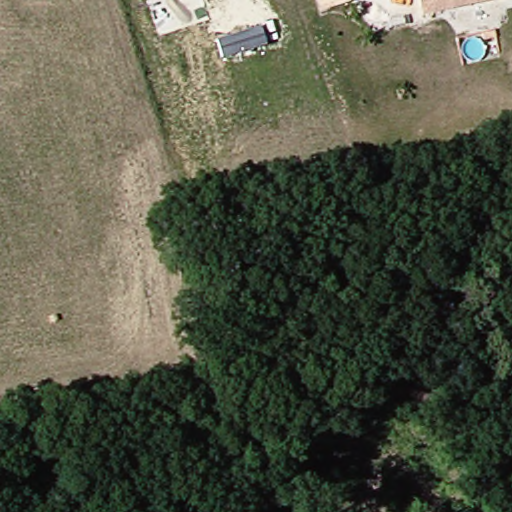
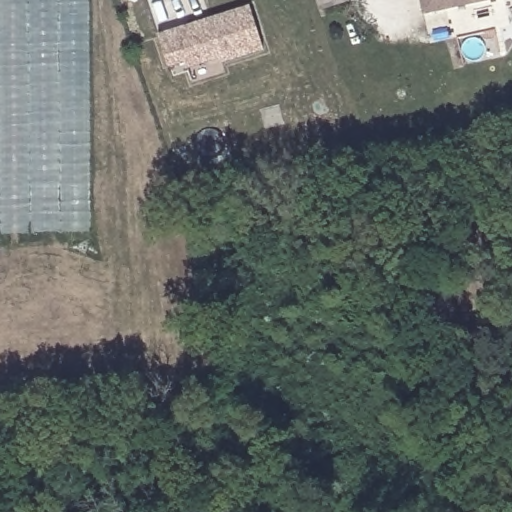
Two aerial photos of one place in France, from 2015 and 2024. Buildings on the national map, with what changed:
new [(90,0),(90,233),(0,236),(0,0),(90,0)]
unchanged [(423,0),(490,0),(425,12),(423,0)]
new [(265,52),(190,76),(187,66),(171,71),(159,37),(251,7),(265,52)]

